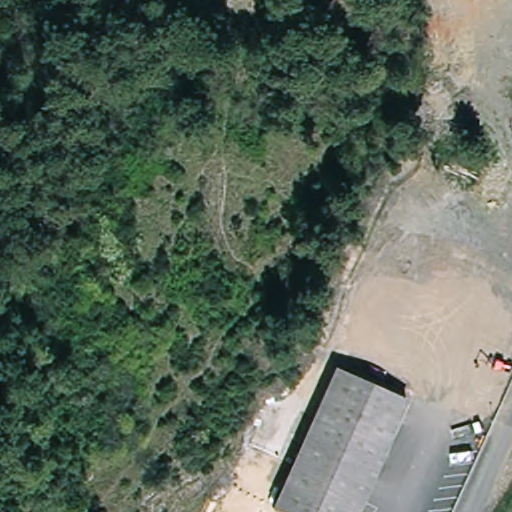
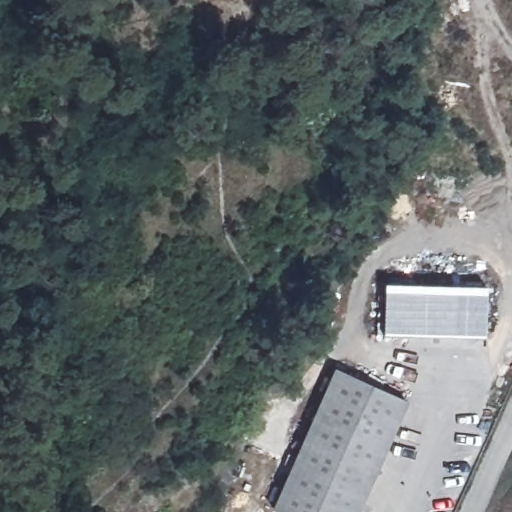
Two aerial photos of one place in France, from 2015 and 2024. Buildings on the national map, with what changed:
new [(485,338),(385,336),(385,284),(487,286),(485,338)]
unchanged [(368,487),(357,512),(292,512),(282,507),(275,505),(337,366),(408,398),(368,487)]

